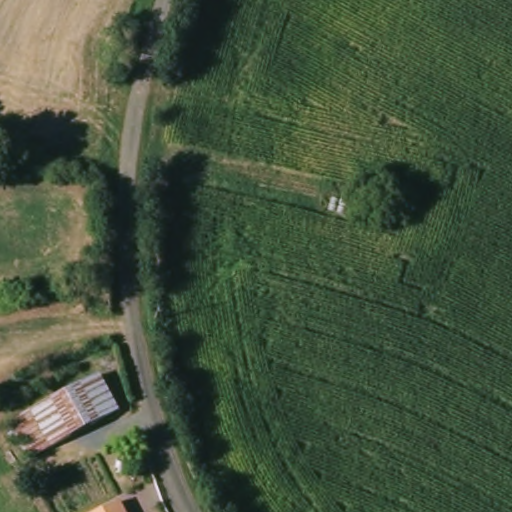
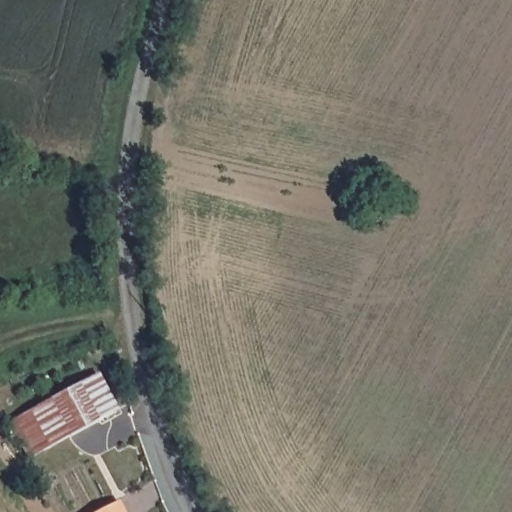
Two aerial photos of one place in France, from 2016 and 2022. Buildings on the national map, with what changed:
unchanged [(15,430),(100,381),(119,413),(33,462),(15,430)]
unchanged [(121,512),(107,512),(117,506),(121,512)]

